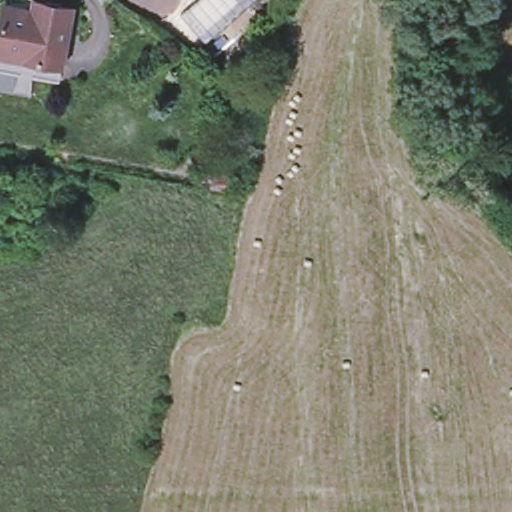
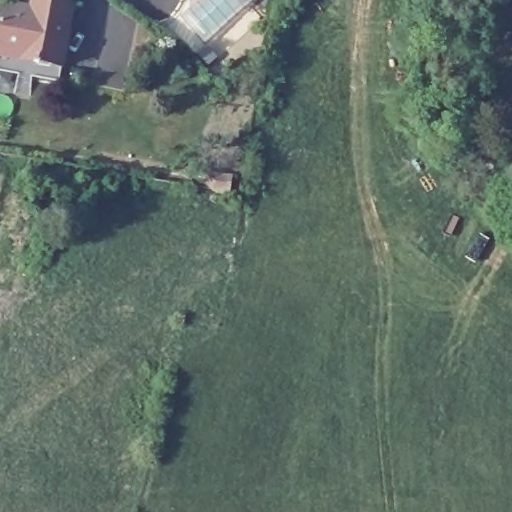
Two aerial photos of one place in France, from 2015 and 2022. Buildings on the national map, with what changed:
unchanged [(176,17),(197,0),(243,0),(248,7),(202,47),(195,40),(176,17)]
unchanged [(0,55),(0,40),(5,6),(35,11),(36,2),(73,7),(62,66),(0,55)]
unchanged [(200,57),(206,51),(213,60),(206,65),(200,57)]

